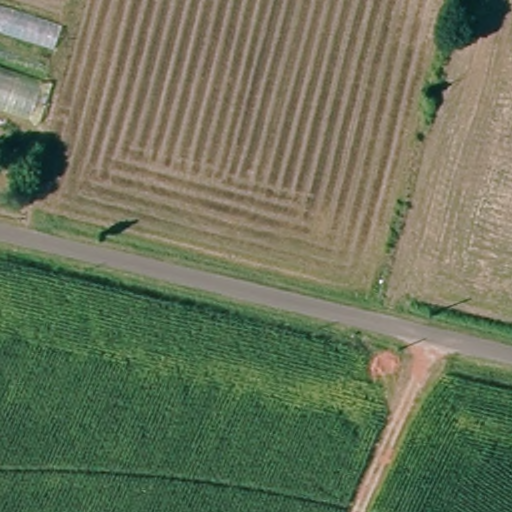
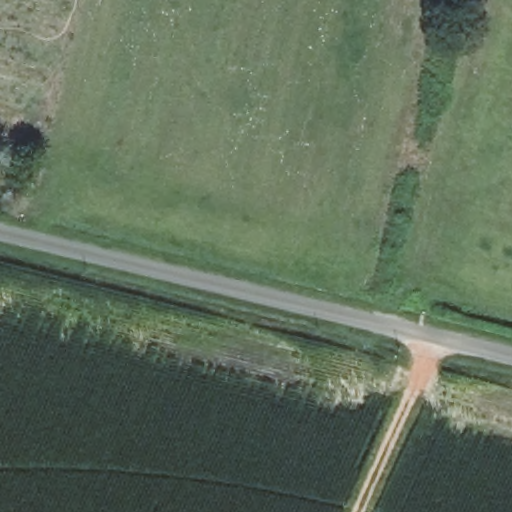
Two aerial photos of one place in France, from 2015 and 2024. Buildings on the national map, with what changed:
new [(31,120),(0,109),(0,0),(66,0),(31,120)]

